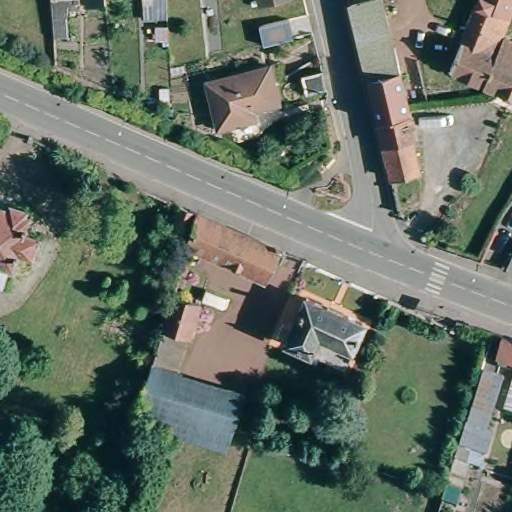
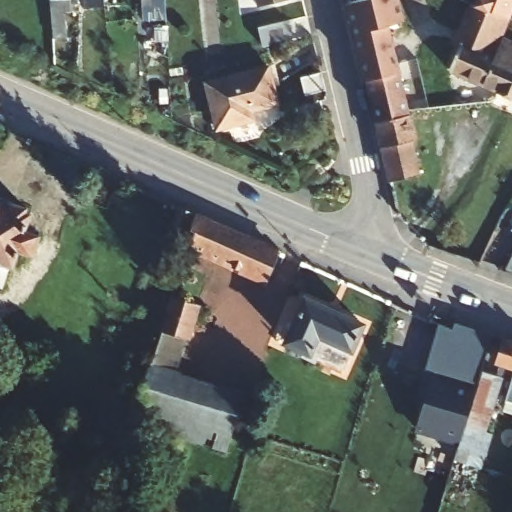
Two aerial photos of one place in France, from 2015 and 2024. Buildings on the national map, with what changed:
demolished [(2,16),(1,0),(39,0),(40,13),(2,16)]
unchanged [(64,12),(66,37),(51,39),(47,0),(76,0),(77,10),(64,12)]
unchanged [(83,7),(82,0),(100,0),(101,5),(83,7)]
unchanged [(146,1),(146,0),(159,0),(160,0),(146,1)]
unchanged [(260,0),(294,0),(294,1),(261,9),(260,0)]
unchanged [(381,0),(385,0),(412,114),(413,118),(379,125),(350,8),(381,0)]
unchanged [(512,45),(512,60),(495,92),(490,91),(448,72),(478,0),(512,0),(512,6),(498,40),(512,45)]
unchanged [(276,27),(288,25),(293,45),(266,50),(262,30),(276,27)]
demolished [(53,69),(38,70),(36,50),(52,48),(53,69)]
unchanged [(512,60),(512,100),(495,92),(512,60)]
unchanged [(250,76),(270,71),(271,75),(279,109),(253,114),(255,124),(218,132),(212,106),(207,86),(245,77),(250,76)]
unchanged [(330,94),(319,96),(308,99),(304,81),(325,76),(330,94)]
unchanged [(419,140),(415,140),(424,176),(393,184),(379,125),(413,118),(419,140)]
unchanged [(26,215),(30,215),(23,233),(37,237),(31,255),(18,250),(12,269),(10,268),(2,291),(0,291),(0,197),(15,202),(14,206),(27,211),(26,215)]
unchanged [(192,250),(195,240),(178,235),(183,214),(201,221),(283,258),(270,286),(192,250)]
unchanged [(512,275),(505,273),(512,254),(512,275)]
unchanged [(367,326),(347,370),(322,358),(320,363),(308,357),(310,353),(281,340),(287,327),(297,331),(311,300),(367,326)]
unchanged [(200,310),(189,345),(187,345),(179,376),(152,367),(156,353),(172,301),(200,310)]
new [(458,448),(411,434),(420,401),(415,399),(439,321),(490,335),(458,448)]
unchanged [(512,370),(495,365),(503,341),(512,344),(512,370)]
unchanged [(246,400),(228,458),(135,427),(152,367),(179,376),(246,400)]
unchanged [(512,370),(512,407),(502,403),(512,370)]
unchanged [(462,450),(467,431),(485,373),(504,378),(486,433),(481,432),(480,435),(475,453),(462,450)]

